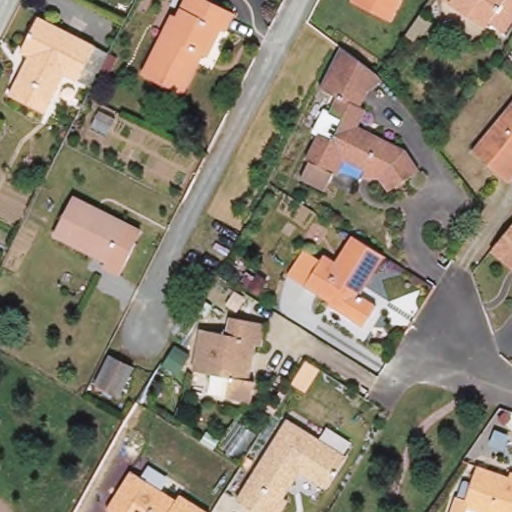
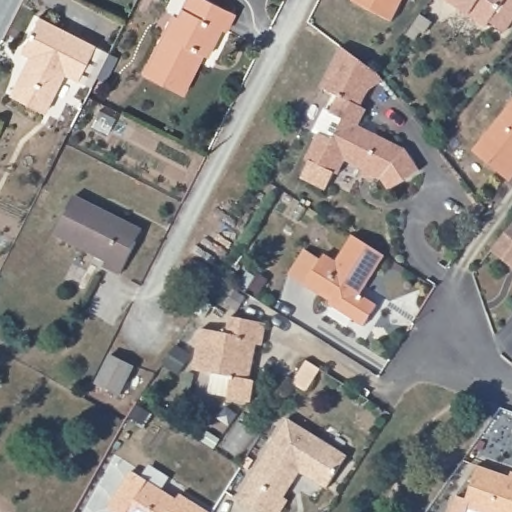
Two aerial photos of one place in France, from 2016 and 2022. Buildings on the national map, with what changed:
unchanged [(142,73),(171,14),(177,17),(185,0),(207,0),(234,14),(225,31),(221,29),(206,57),(202,56),(197,65),(183,94),(142,73)]
unchanged [(357,0),(404,0),(390,22),(357,0)]
unchanged [(490,20),(486,26),(448,0),(512,0),(512,17),(504,30),(490,20)]
unchanged [(20,55),(38,20),(107,53),(90,89),(63,76),(44,117),(9,99),(29,59),(20,55)]
unchanged [(320,132),(315,130),(325,109),(330,112),(338,96),(320,87),(328,71),(330,68),(340,47),(361,62),(367,67),(368,67),(378,74),(384,82),(370,92),(362,108),(368,112),(360,128),(407,152),(420,172),(390,192),(382,178),(346,161),(339,175),(307,159),(320,132)]
unchanged [(512,109),(512,179),(510,182),(475,152),(512,109)]
unchanged [(141,231),(135,242),(120,273),(102,266),(105,261),(54,235),(73,197),(126,224),(141,231)]
unchanged [(512,225),(512,268),(511,270),(490,251),(508,230),(512,225)]
unchanged [(337,260),(353,234),(385,255),(361,292),(378,303),(365,324),(331,302),(332,300),(306,283),(325,252),(337,260)]
unchanged [(229,334),(232,317),(268,323),(264,345),(256,344),(250,380),(255,381),(252,402),(228,397),(232,377),(195,370),(203,329),(229,334)]
unchanged [(138,366),(124,396),(99,384),(114,354),(138,366)]
unchanged [(347,453),(327,487),(300,470),(285,497),(288,499),(281,512),(260,512),(239,498),(287,417),(347,453)]
unchanged [(460,501),(469,504),(480,470),(511,482),(512,480),(512,512),(456,512),(460,501)]
unchanged [(133,475),(179,504),(182,499),(203,512),(109,512),(133,475)]

